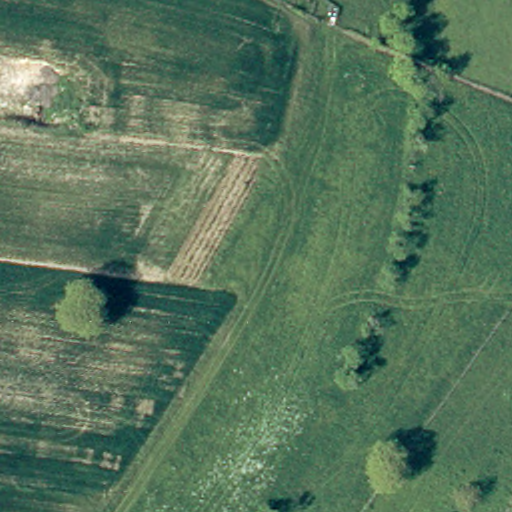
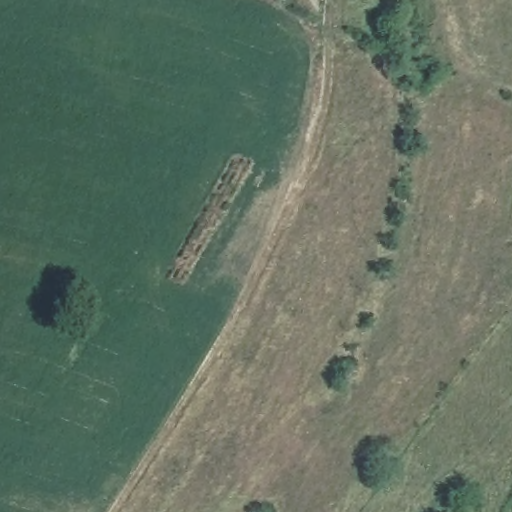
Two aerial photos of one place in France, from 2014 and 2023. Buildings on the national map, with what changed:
[]

